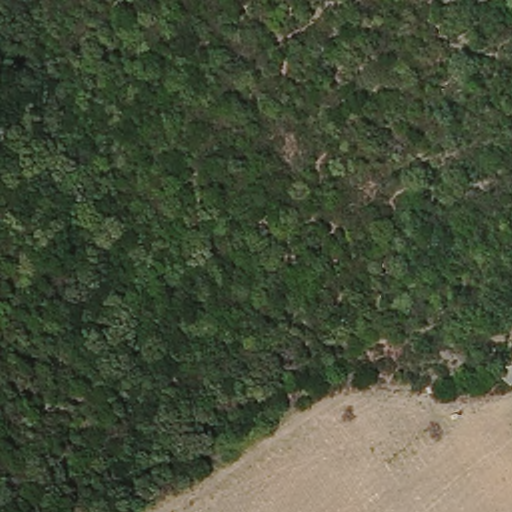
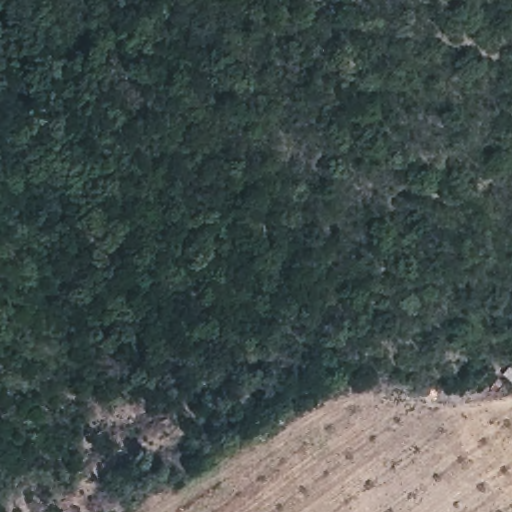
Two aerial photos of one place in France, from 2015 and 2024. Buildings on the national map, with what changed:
unchanged [(508,383),(497,359),(512,356),(512,381),(508,383)]

